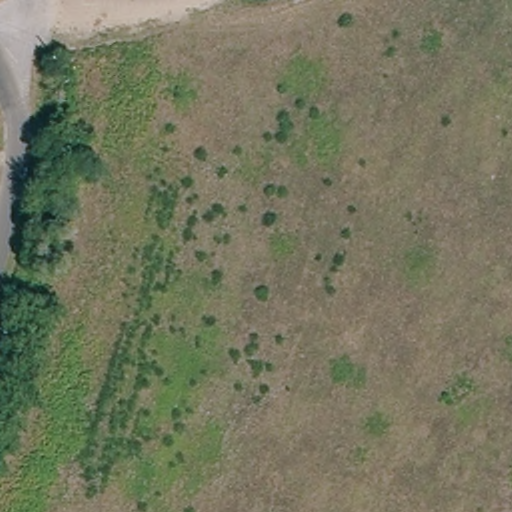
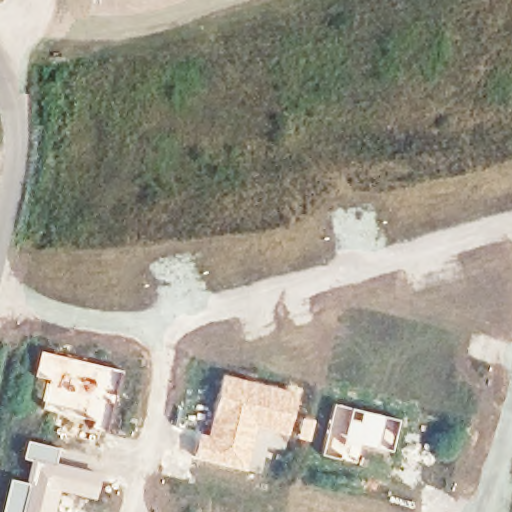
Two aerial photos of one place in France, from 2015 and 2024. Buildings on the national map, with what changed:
new [(40,350),(101,365),(88,417),(41,404),(46,380),(34,377),(40,350)]
new [(198,430),(205,432),(220,372),(294,389),(284,435),(255,428),(245,469),(193,456),(198,430)]
new [(334,402),(384,415),(375,447),(339,438),(325,439),(334,402)]
new [(24,480),(29,458),(21,456),(25,438),(58,446),(54,461),(98,471),(91,497),(58,490),(51,512),(0,512),(0,509),(8,476),(24,480)]

